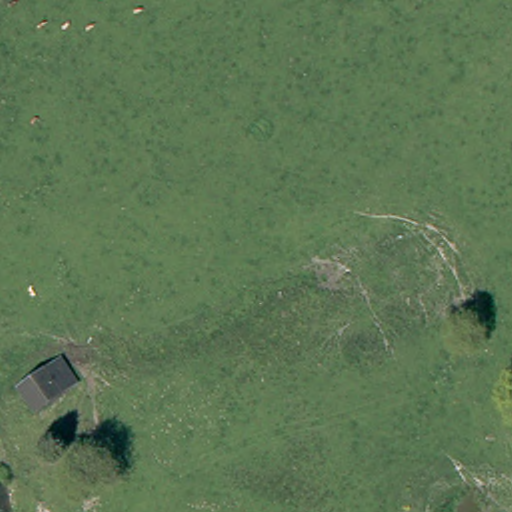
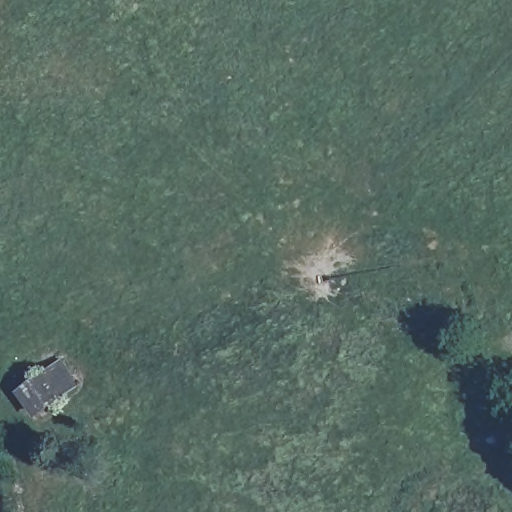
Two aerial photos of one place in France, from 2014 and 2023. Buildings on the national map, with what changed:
unchanged [(17,384),(52,356),(73,381),(33,412),(17,384)]

